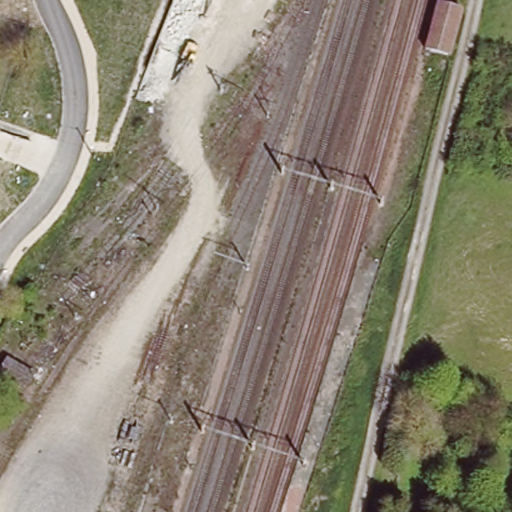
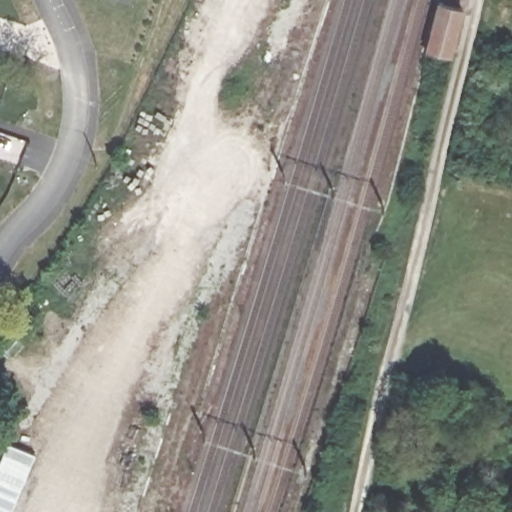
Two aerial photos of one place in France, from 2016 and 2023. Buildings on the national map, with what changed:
unchanged [(453,56),(422,50),(434,0),(439,0),(465,6),(453,56)]
unchanged [(40,372),(28,390),(0,374),(0,364),(6,351),(40,372)]
new [(34,453),(9,512),(0,512),(0,446),(2,442),(34,453)]

